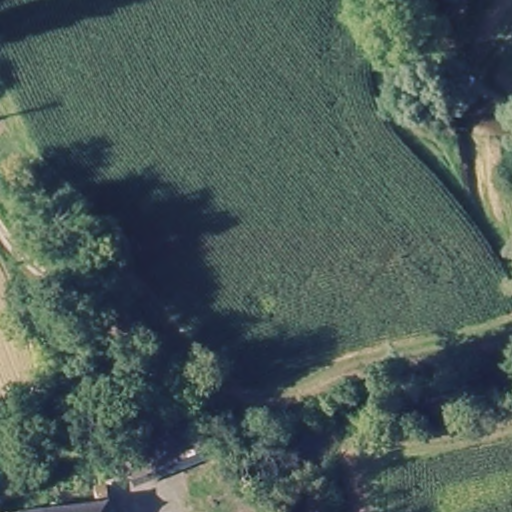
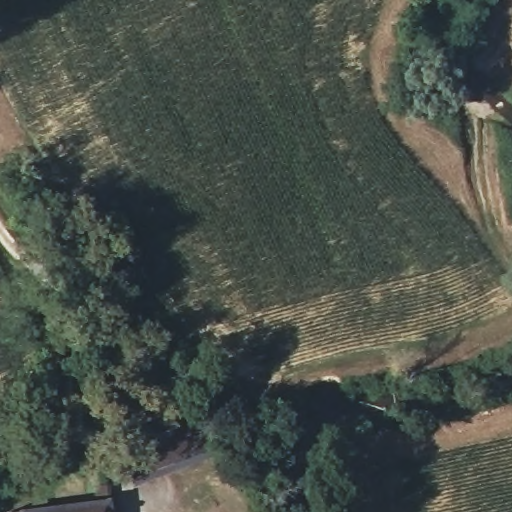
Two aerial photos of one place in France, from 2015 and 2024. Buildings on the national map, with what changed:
unchanged [(195,421),(209,456),(211,461),(171,477),(136,490),(121,453),(195,421)]
unchanged [(102,503),(101,487),(113,486),(115,512),(25,512),(80,506),(102,503)]

